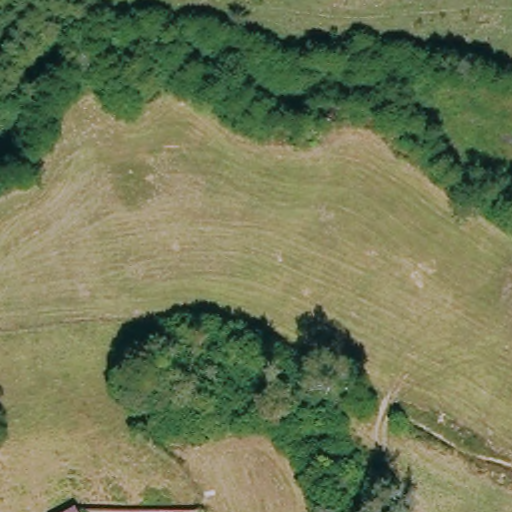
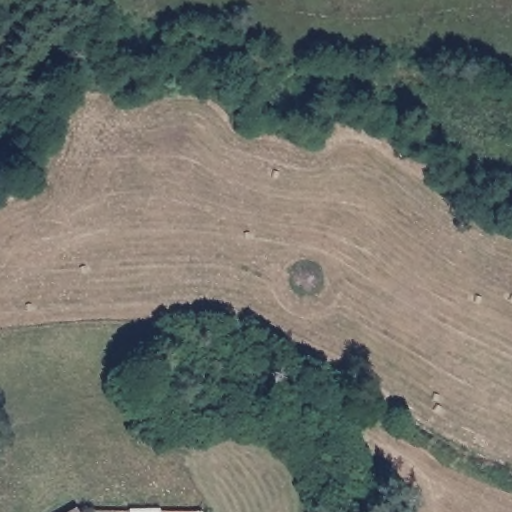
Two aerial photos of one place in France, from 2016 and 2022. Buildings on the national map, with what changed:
unchanged [(71,512),(74,511),(74,512),(71,512)]

